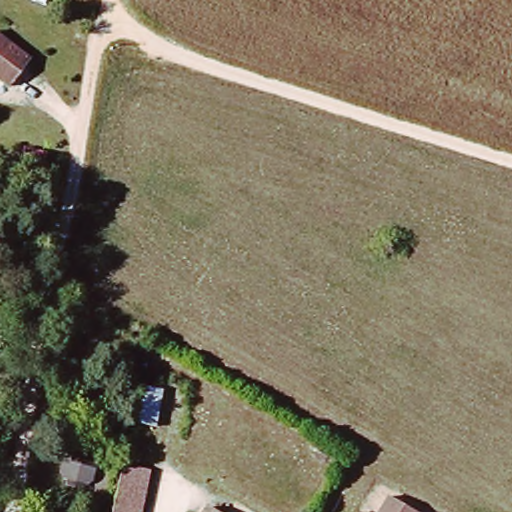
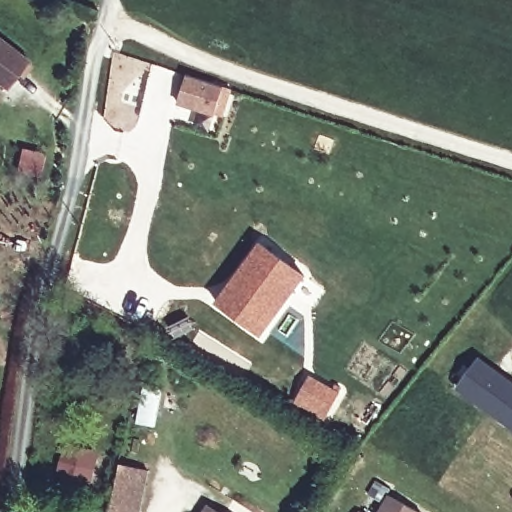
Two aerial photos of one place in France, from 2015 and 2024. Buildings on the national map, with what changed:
unchanged [(0,82),(0,40),(35,61),(22,82),(15,91),(0,82)]
new [(187,77),(230,92),(222,119),(178,105),(187,77)]
unchanged [(389,251),(387,246),(389,241),(392,238),(397,236),(402,237),(405,241),(407,246),(405,250),(402,255),(397,255),(392,255),(389,251)]
new [(260,241),(305,277),(260,338),(214,302),(260,241)]
new [(512,390),(512,428),(464,392),(482,367),(512,390)]
new [(310,374),(340,392),(324,420),(293,402),(310,374)]
unchanged [(142,422),(148,388),(173,394),(165,428),(142,422)]
unchanged [(71,438),(75,436),(84,436),(90,440),(95,446),(95,455),(92,462),(87,469),(82,471),(75,470),(66,462),(65,447),(66,443),(71,438)]
unchanged [(130,467),(154,473),(151,487),(145,512),(119,512),(127,480),(130,467)]
unchanged [(418,512),(382,512),(391,495),(418,512)]
unchanged [(218,512),(209,512),(212,508),(218,512)]

